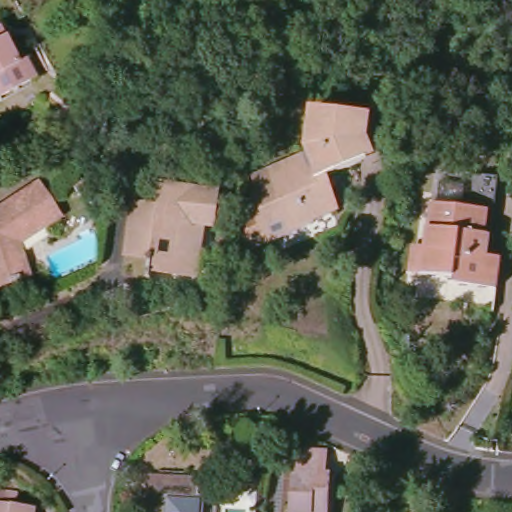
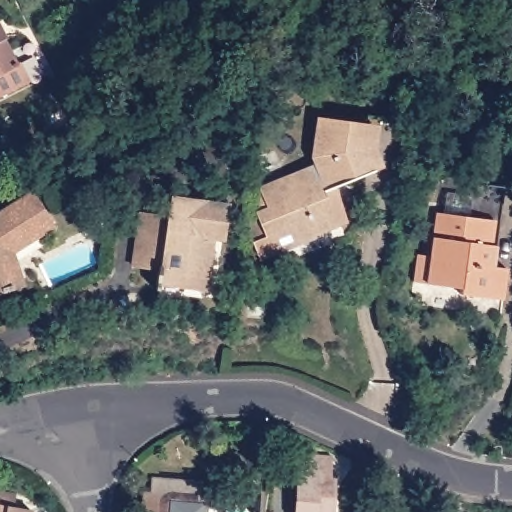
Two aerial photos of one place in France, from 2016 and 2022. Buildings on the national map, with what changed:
unchanged [(21,62),(26,59),(37,79),(31,82),(1,98),(0,99),(0,30),(18,64),(21,62)]
unchanged [(262,239),(250,244),(252,223),(268,215),(266,209),(277,204),(268,184),(322,160),(318,152),(323,115),(366,121),(363,147),(372,168),(329,187),(333,198),(338,196),(348,217),(354,231),(329,242),(323,229),(302,238),(267,253),(262,239)]
unchanged [(54,225),(13,252),(23,284),(0,292),(0,214),(32,192),(54,225)]
unchanged [(190,285),(165,281),(167,267),(163,267),(140,263),(143,237),(147,213),(172,217),(175,196),(232,204),(227,240),(217,239),(211,278),(210,287),(190,285)]
unchanged [(422,254),(436,257),(442,212),(500,220),(497,245),(502,246),(499,267),(511,268),(507,299),(466,294),(467,288),(433,283),(420,282),(422,254)]
unchanged [(331,458),(330,480),(335,481),(332,512),(297,512),(300,456),(331,458)]
unchanged [(142,501),(150,501),(151,486),(194,490),(192,508),(212,510),(212,512),(142,512),(142,501)]
unchanged [(0,491),(17,493),(15,507),(21,508),(32,510),(32,512),(0,512),(0,491)]

